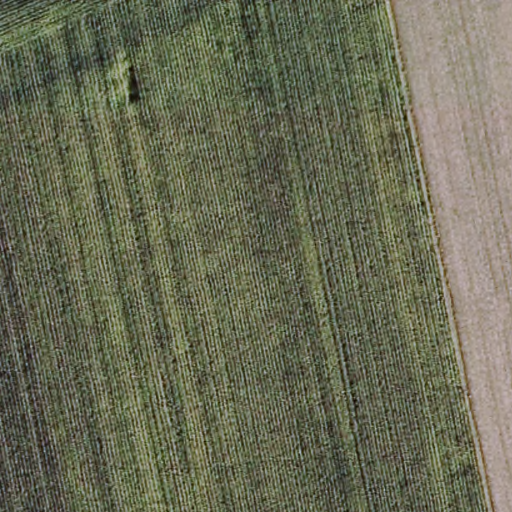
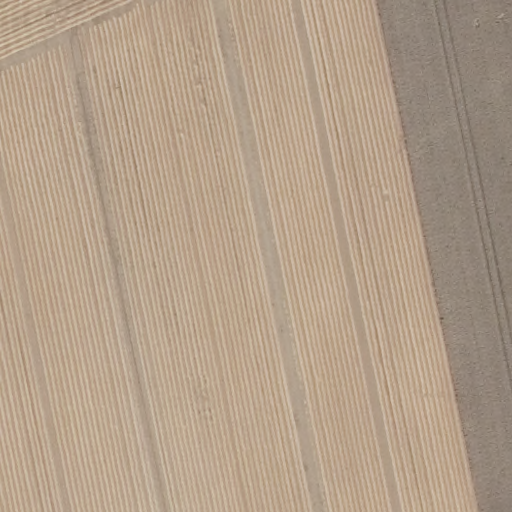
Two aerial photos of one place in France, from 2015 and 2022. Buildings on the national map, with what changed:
[]

